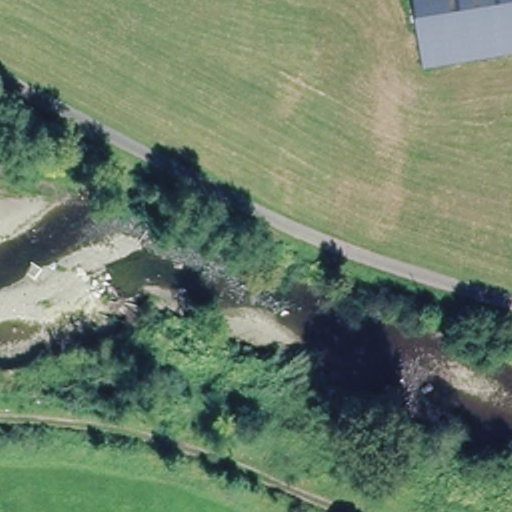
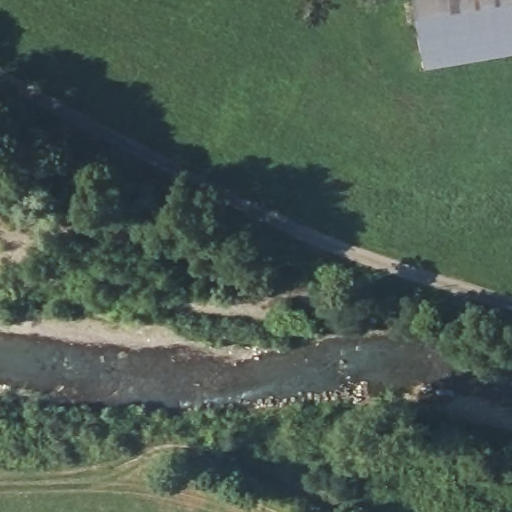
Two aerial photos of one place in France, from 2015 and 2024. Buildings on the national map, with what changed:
unchanged [(414,0),(512,0),(512,51),(423,64),(414,0)]

